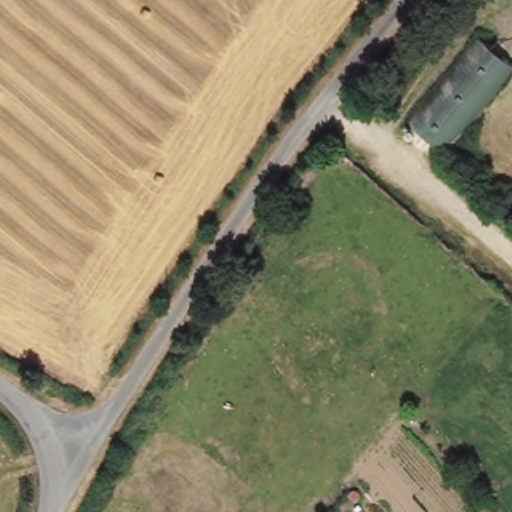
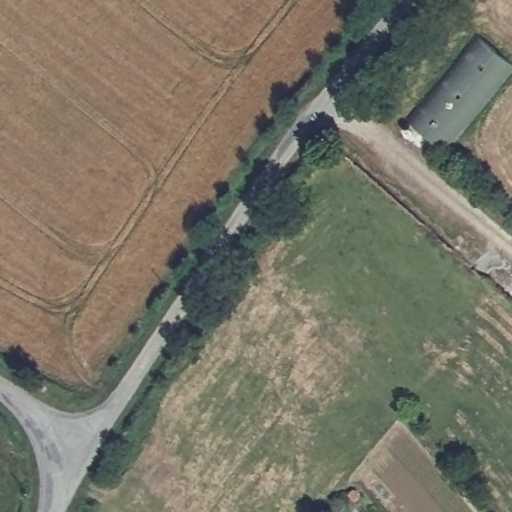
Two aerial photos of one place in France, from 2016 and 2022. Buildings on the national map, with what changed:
unchanged [(510,64),(441,151),(417,132),(410,140),(400,133),(477,40),(510,64)]

